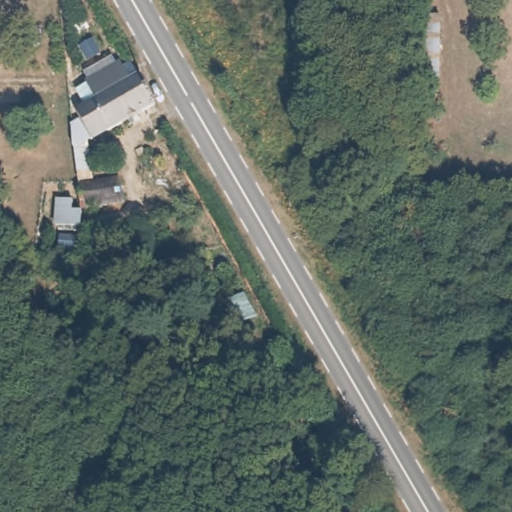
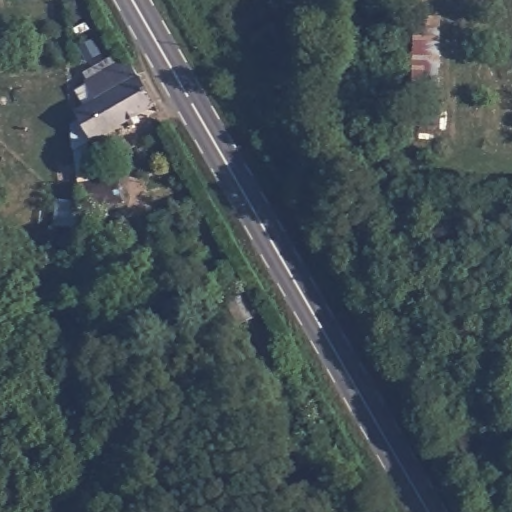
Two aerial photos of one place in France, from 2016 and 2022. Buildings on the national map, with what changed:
unchanged [(440,91),(419,92),(418,15),(441,13),(440,91)]
unchanged [(83,125),(77,116),(87,110),(76,95),(86,88),(117,67),(129,84),(136,79),(153,106),(94,142),(91,184),(74,186),(72,156),(69,134),(83,125)]
unchanged [(72,201),(71,212),(79,213),(77,227),(55,225),(57,199),(72,201)]

